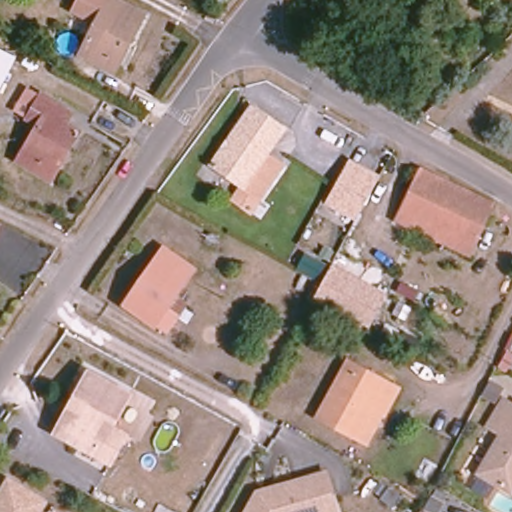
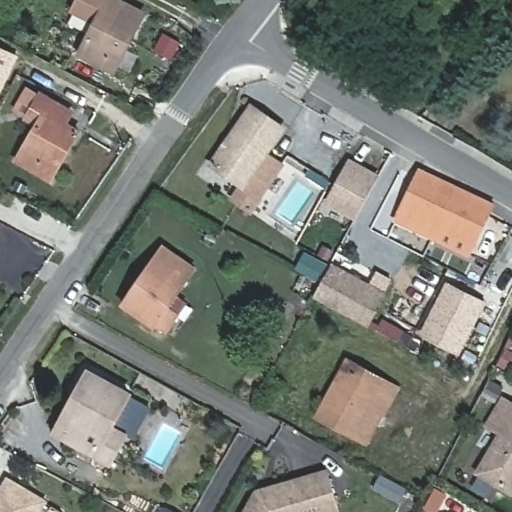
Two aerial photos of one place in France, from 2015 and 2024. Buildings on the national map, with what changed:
unchanged [(109,72),(74,54),(90,23),(67,11),(73,0),(111,0),(140,15),(109,72)]
unchanged [(15,58),(0,85),(0,51),(15,58)]
unchanged [(42,93),(72,111),(66,123),(81,131),(51,180),(17,160),(38,126),(27,119),(42,93)]
unchanged [(214,170),(249,109),(282,128),(247,189),(214,170)]
unchanged [(358,216),(330,200),(351,163),(379,178),(358,216)]
unchanged [(402,219),(407,210),(427,168),(494,202),(474,243),(470,251),(402,219)]
unchanged [(196,267),(177,296),(187,303),(167,330),(157,323),(154,326),(123,304),(166,246),(196,267)]
unchanged [(332,270),(383,296),(366,327),(318,300),(332,270)]
new [(419,335),(446,281),(486,303),(458,355),(419,335)]
unchanged [(356,437),(318,416),(335,387),(350,362),(388,383),(399,390),(384,416),(367,444),(356,437)]
unchanged [(85,387),(94,372),(132,394),(115,426),(129,435),(114,462),(99,454),(59,433),(85,387)]
unchanged [(478,477),(501,438),(487,430),(502,404),(512,410),(512,493),(511,496),(506,493),(478,477)]
unchanged [(264,489),(275,486),(287,483),(292,486),(295,481),(327,472),(337,512),(246,512),(257,491),(264,489)]
unchanged [(0,512),(0,497),(8,481),(45,501),(39,512),(0,512)]
unchanged [(400,496),(392,507),(381,499),(389,488),(400,496)]

